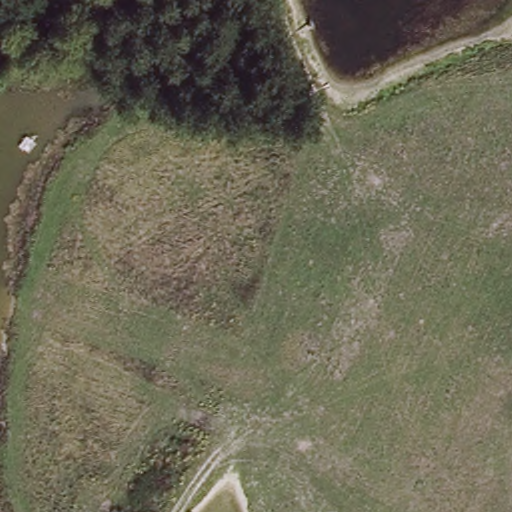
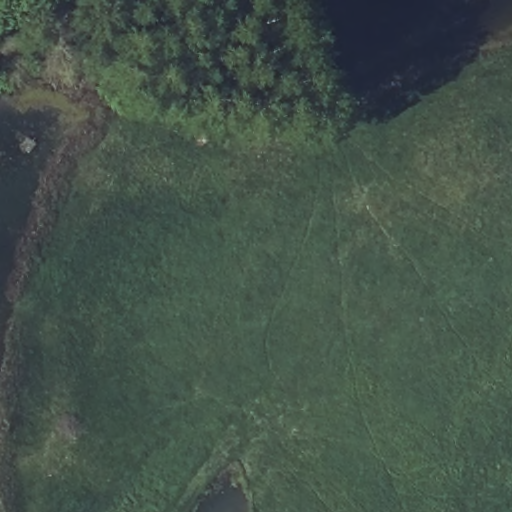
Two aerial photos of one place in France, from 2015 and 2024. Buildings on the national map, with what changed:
[]

